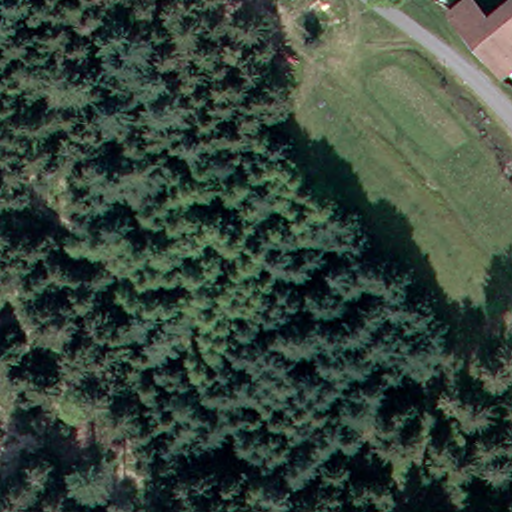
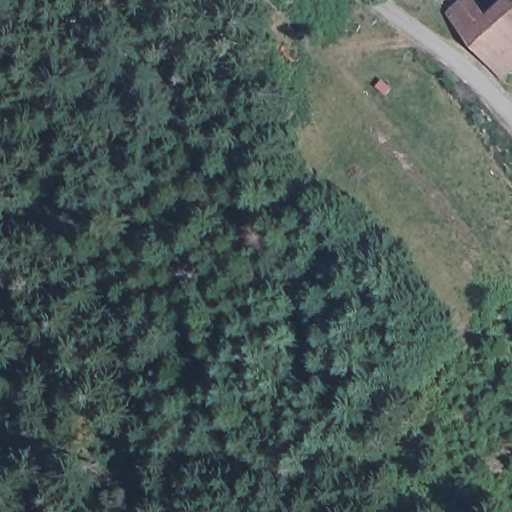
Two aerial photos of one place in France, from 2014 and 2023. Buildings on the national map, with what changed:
unchanged [(449,13),(468,0),(483,19),(510,0),(512,0),(512,64),(498,74),(449,13)]

